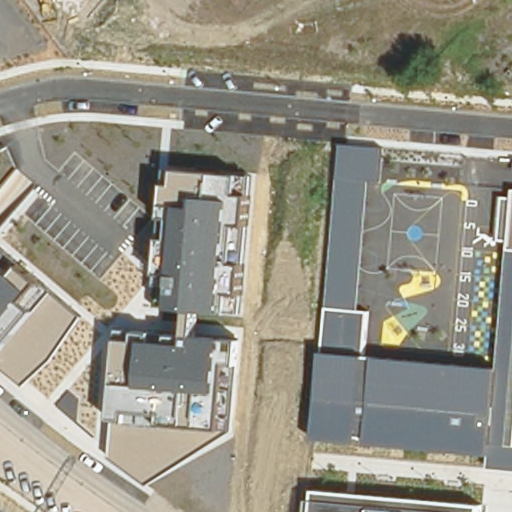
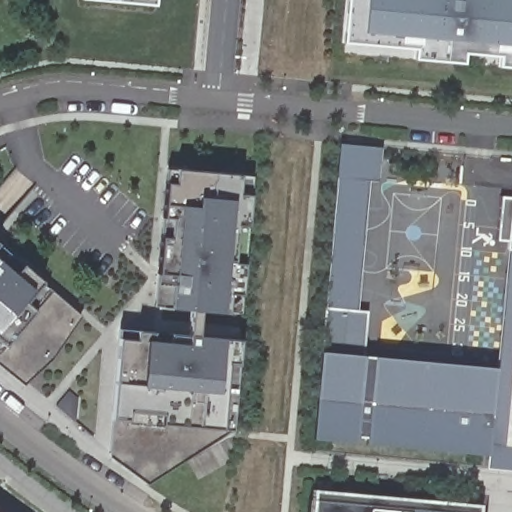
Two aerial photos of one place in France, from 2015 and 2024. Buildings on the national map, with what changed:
new [(154,0),(154,5),(97,0),(154,0)]
new [(463,54),(462,65),(412,60),(413,49),(342,42),(346,0),(512,0),(512,67),(496,66),(497,56),(463,54)]
unchanged [(383,185),(370,184),(360,311),(370,312),(365,356),(321,352),(341,145),(385,148),(383,185)]
unchanged [(240,315),(157,309),(169,169),(250,176),(240,315)]
unchanged [(486,455),(495,368),(506,244),(497,242),(502,196),(512,197),(512,471),(485,468),(486,455)]
unchanged [(54,291),(0,354),(0,245),(54,291)]
unchanged [(0,364),(0,354),(54,291),(85,317),(55,360),(25,386),(0,364)]
unchanged [(120,328),(241,337),(232,431),(112,423),(120,328)]
unchanged [(365,356),(495,368),(486,455),(313,439),(321,352),(365,356)]
unchanged [(109,457),(112,423),(232,431),(147,485),(109,457)]
unchanged [(479,512),(313,512),(315,490),(480,505),(479,512)]

